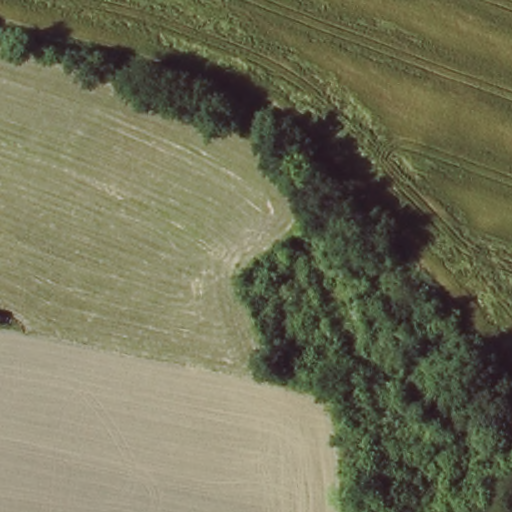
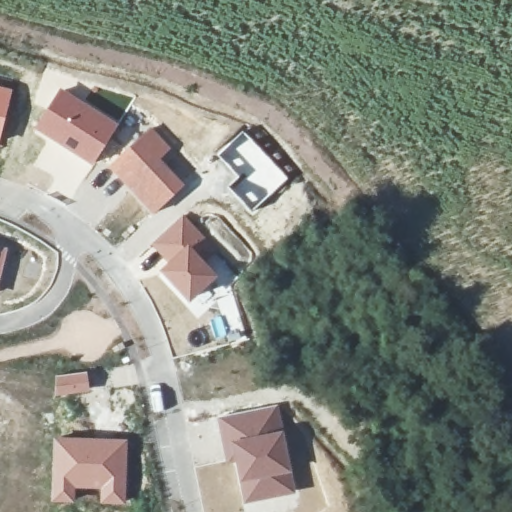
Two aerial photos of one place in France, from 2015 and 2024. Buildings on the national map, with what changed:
new [(13,90),(0,141),(0,86),(13,90)]
new [(60,87),(119,123),(92,167),(33,130),(60,87)]
new [(151,126),(172,149),(162,159),(186,185),(153,216),(107,167),(151,126)]
new [(244,129),(289,178),(251,214),(226,186),(235,178),(215,155),(244,129)]
new [(183,213),(206,238),(195,249),(219,276),(189,304),(158,271),(166,263),(149,244),(183,213)]
new [(0,280),(0,247),(8,248),(0,280)]
new [(88,371),(90,393),(55,397),(54,375),(88,371)]
new [(279,404),(292,466),(295,496),(243,506),(234,462),(226,463),(216,417),(279,404)]
new [(53,436),(129,439),(127,505),(100,503),(100,489),(76,488),(75,504),(51,503),(53,436)]

